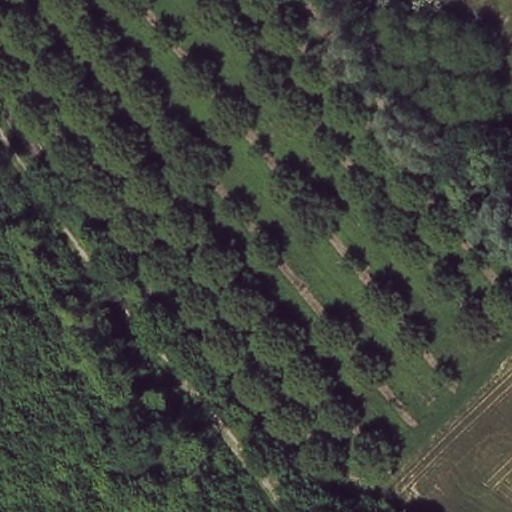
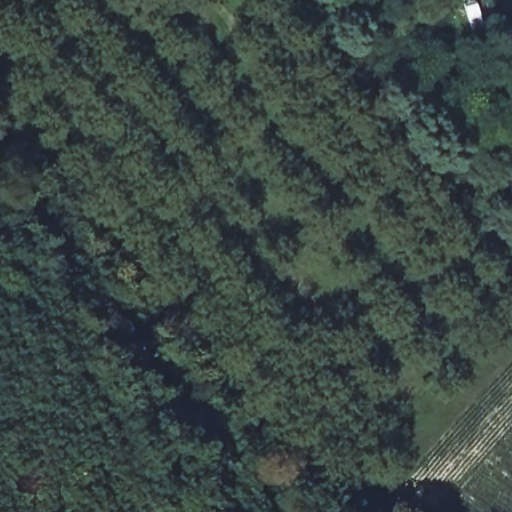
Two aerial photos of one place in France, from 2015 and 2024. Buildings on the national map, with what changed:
[]

